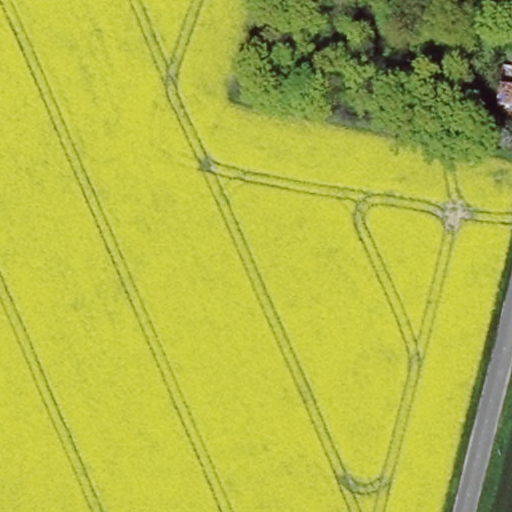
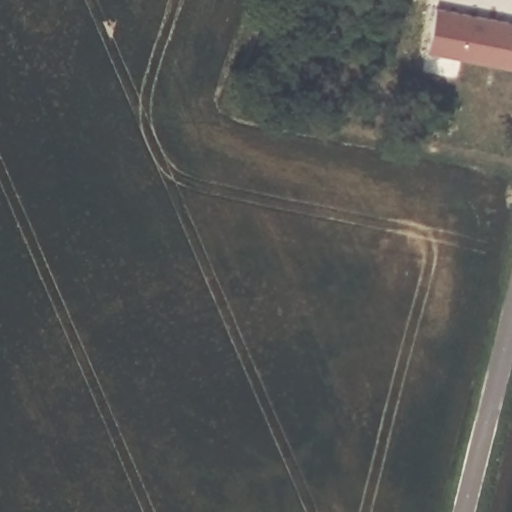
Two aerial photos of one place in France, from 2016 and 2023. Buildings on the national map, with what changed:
new [(434,7),(512,22),(512,69),(425,52),(434,7)]
demolished [(512,83),(512,106),(497,105),(500,81),(512,83)]

